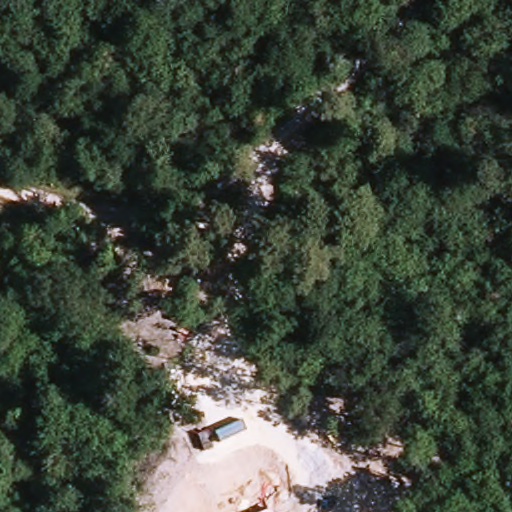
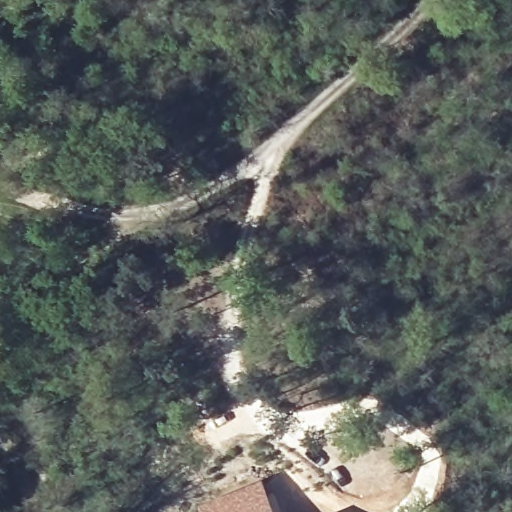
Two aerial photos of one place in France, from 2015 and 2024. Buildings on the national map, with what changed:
new [(263,480),(276,512),(203,512),(201,506),(263,480)]

